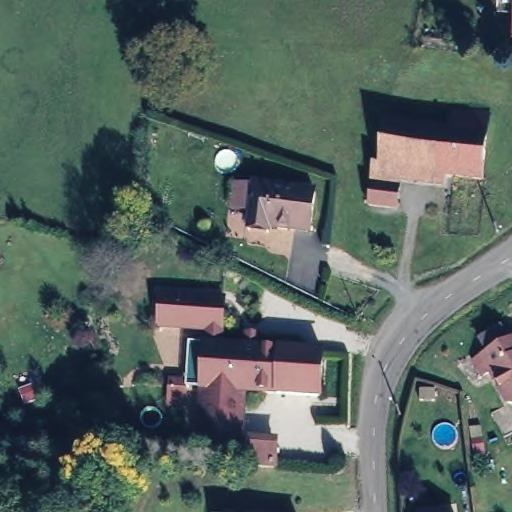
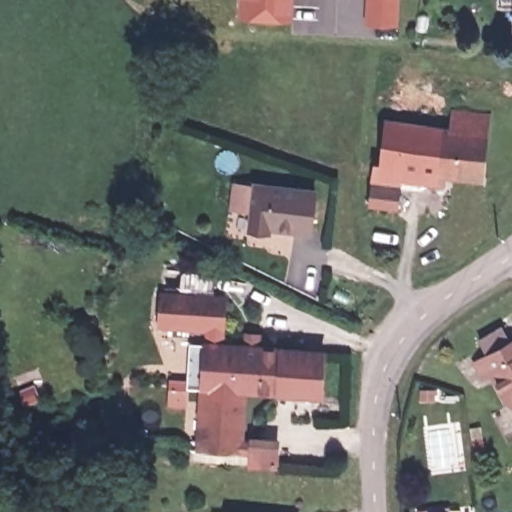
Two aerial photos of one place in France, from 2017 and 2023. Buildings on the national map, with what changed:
new [(240,18),(242,0),(290,0),(289,21),(240,18)]
new [(397,0),(395,26),(366,24),(367,0),(397,0)]
unchanged [(446,131),(450,110),(484,113),(477,179),(399,170),(393,208),(365,205),(369,162),(376,163),(381,122),(446,131)]
unchanged [(313,237),(246,227),(246,208),(221,204),(225,177),(317,185),(313,237)]
unchanged [(225,296),(220,335),(201,333),(156,328),(158,290),(225,296)]
unchanged [(325,403),(242,396),(196,391),(201,333),(220,335),(327,342),(325,403)]
unchanged [(512,408),(510,409),(505,407),(490,383),(492,382),(487,373),(477,380),(470,366),(511,342),(512,342),(512,408)]
unchanged [(242,436),(214,432),(214,453),(195,451),(196,391),(242,396),(242,436)]
unchanged [(276,471),(214,462),(214,453),(214,432),(242,436),(278,441),(276,471)]

